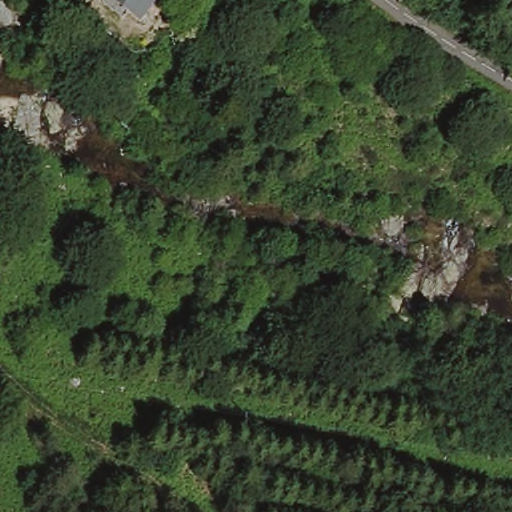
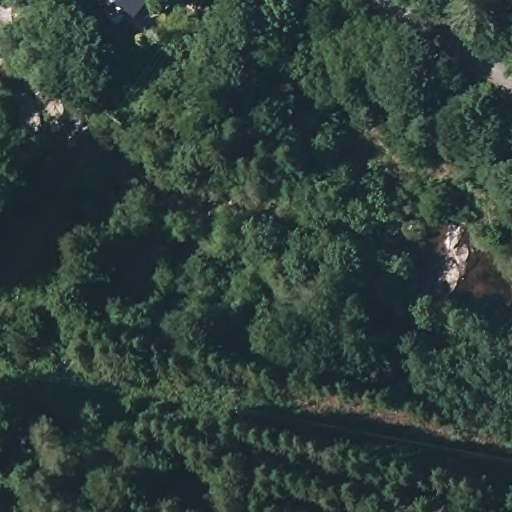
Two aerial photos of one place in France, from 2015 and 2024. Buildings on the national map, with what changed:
unchanged [(107,0),(150,0),(132,22),(107,0)]

